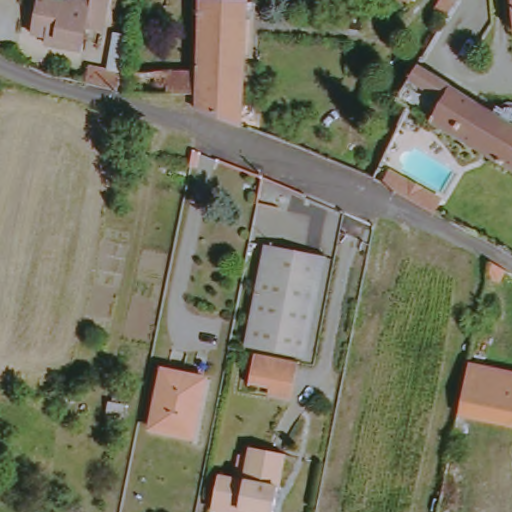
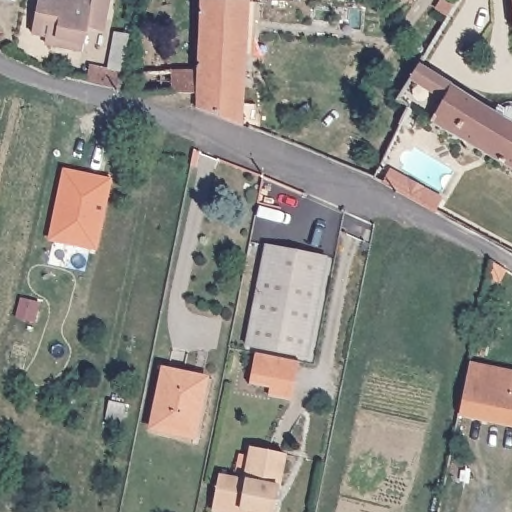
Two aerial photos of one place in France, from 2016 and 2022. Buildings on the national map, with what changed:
unchanged [(51,40),(36,35),(45,0),(51,0),(72,5),(75,0),(96,5),(97,0),(115,0),(107,37),(92,33),(86,56),(68,52),(50,47),(51,40)]
unchanged [(247,131),(202,115),(205,99),(132,97),(131,75),(207,75),(217,4),(225,4),(225,0),(255,0),(255,8),(263,9),(247,131)]
unchanged [(418,4),(411,0),(420,0),(418,4)]
unchanged [(128,74),(127,80),(125,80),(121,95),(91,86),(96,67),(128,74)]
unchanged [(400,105),(420,73),(457,95),(512,125),(512,168),(413,113),(400,105)]
new [(63,168),(112,179),(97,251),(47,241),(63,168)]
unchanged [(257,346),(280,246),(335,259),(314,357),(257,346)]
unchanged [(300,366),(292,397),(257,388),(263,357),(300,366)]
unchanged [(482,362),(512,369),(512,420),(472,411),(474,399),(482,362)]
unchanged [(200,442),(159,434),(173,373),(214,383),(200,442)]
unchanged [(275,512),(244,512),(216,505),(222,476),(248,480),(256,448),(287,455),(275,512)]

